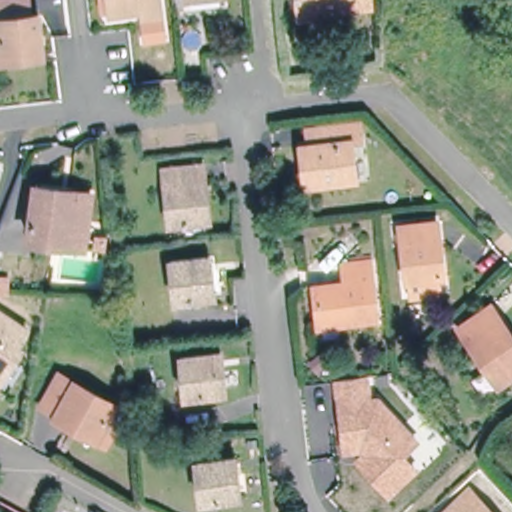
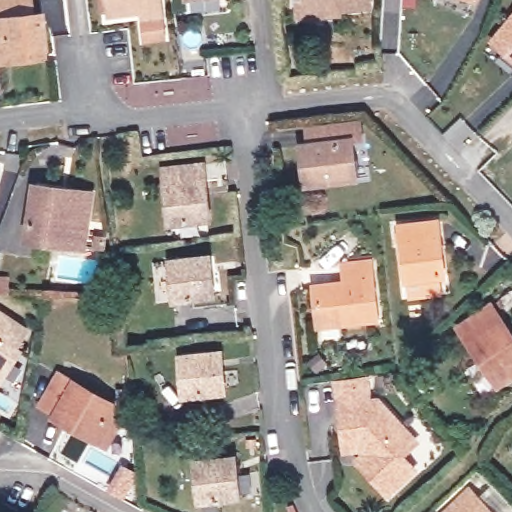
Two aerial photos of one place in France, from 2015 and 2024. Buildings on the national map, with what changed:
unchanged [(42,55),(0,60),(0,0),(28,0),(30,16),(39,15),(42,55)]
unchanged [(141,37),(138,18),(137,10),(105,15),(103,0),(155,0),(157,16),(160,35),(141,37)]
unchanged [(299,7),(298,0),(370,0),(371,5),(340,9),(300,13),(299,7)]
new [(477,3),(468,0),(478,0),(477,3)]
new [(512,13),(512,60),(489,41),(512,13)]
unchanged [(308,184),(303,146),(312,145),(310,129),(318,128),(360,123),(362,140),(351,142),(356,178),(308,184)]
unchanged [(205,219),(165,224),(159,168),(199,163),(205,219)]
unchanged [(67,244),(29,238),(36,185),(91,193),(87,220),(84,247),(67,244)]
unchanged [(423,290),(422,273),(407,275),(400,221),(436,217),(442,270),(437,271),(440,288),(423,290)]
unchanged [(215,295),(175,300),(171,260),(210,255),(215,295)]
unchanged [(321,325),(316,285),(345,282),(343,267),(343,261),(370,258),(371,264),(377,319),(321,325)]
unchanged [(7,293),(0,293),(0,278),(7,278),(7,293)]
unchanged [(512,375),(498,384),(460,328),(491,306),(512,337),(512,375)]
unchanged [(27,331),(16,347),(20,350),(2,377),(0,380),(0,313),(27,331)]
unchanged [(224,392),(184,396),(179,357),(219,352),(224,392)]
unchanged [(97,440),(87,434),(57,417),(44,410),(46,407),(32,400),(50,369),(106,401),(99,412),(110,418),(97,440)]
unchanged [(367,374),(372,397),(378,396),(420,442),(407,452),(418,468),(387,496),(354,457),(359,450),(341,454),(332,378),(367,374)]
unchanged [(240,496),(200,501),(196,461),(236,456),(240,496)]
unchanged [(490,512),(447,512),(470,490),(490,512)]

